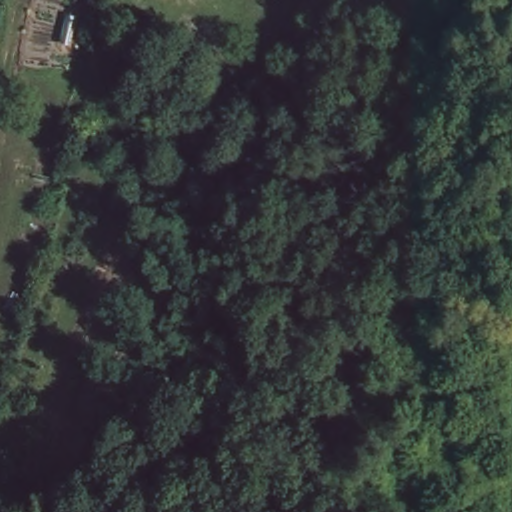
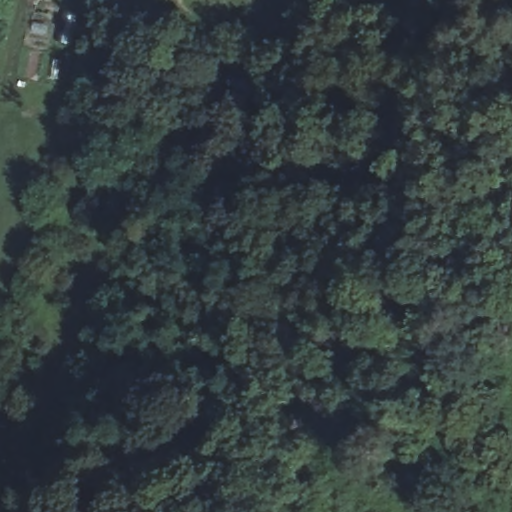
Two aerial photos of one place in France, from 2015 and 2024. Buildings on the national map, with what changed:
unchanged [(512,323),(512,331),(508,340),(489,333),(496,316),(512,323)]

